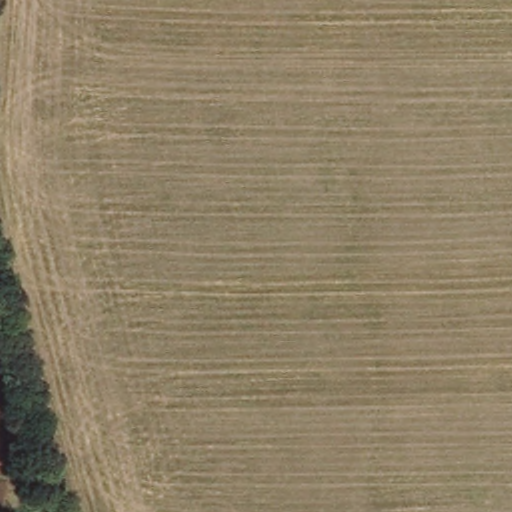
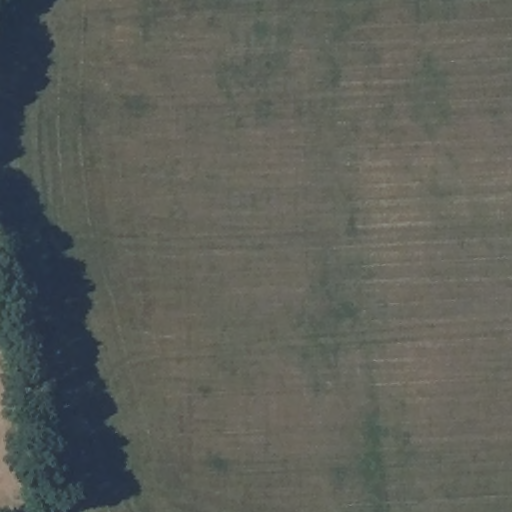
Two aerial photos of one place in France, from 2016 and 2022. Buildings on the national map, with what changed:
[]

